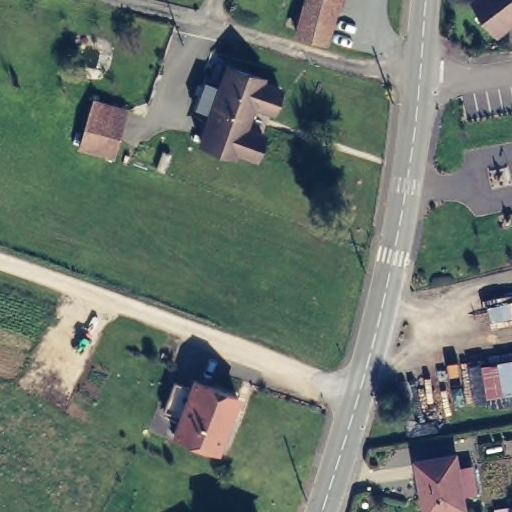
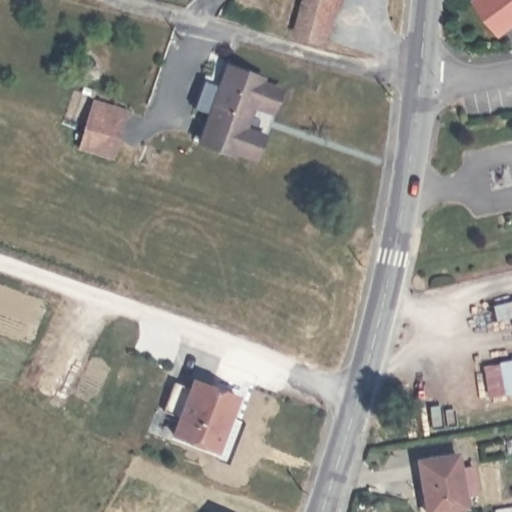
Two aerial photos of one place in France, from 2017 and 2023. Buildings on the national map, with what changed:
unchanged [(351,20),(344,43),(301,32),(301,29),(287,25),(295,0),(308,0),(342,0),(338,16),(351,20)]
unchanged [(476,0),(512,0),(512,23),(501,32),(476,0)]
unchanged [(202,111),(213,83),(214,78),(229,84),(236,69),(271,83),(270,89),(287,97),(280,117),(262,111),(253,134),(270,141),(264,162),(245,154),(243,160),(207,145),(218,117),(202,111)]
unchanged [(88,94),(131,107),(113,159),(74,145),(88,94)]
unchanged [(493,396),(485,366),(512,359),(512,393),(493,396)]
unchanged [(243,397),(236,421),(232,420),(221,452),(179,436),(186,420),(169,412),(179,386),(196,392),(201,383),(243,397)]
unchanged [(463,455),(471,503),(437,511),(429,462),(463,455)]

